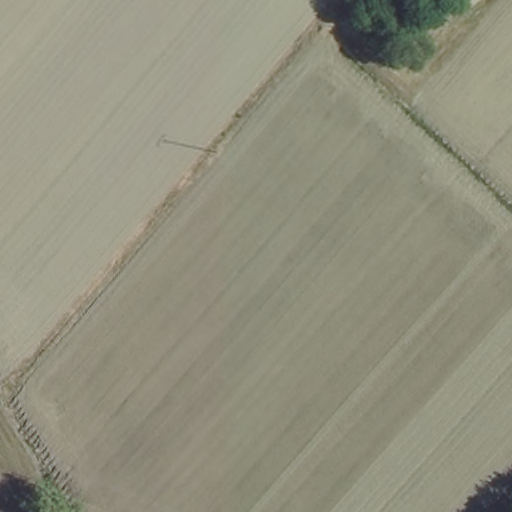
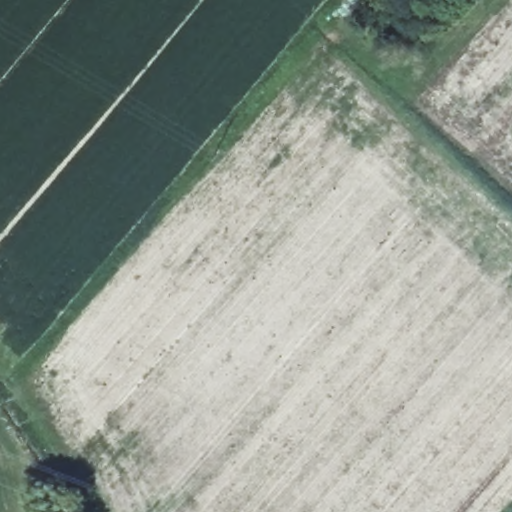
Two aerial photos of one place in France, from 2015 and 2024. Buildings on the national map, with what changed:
[]

